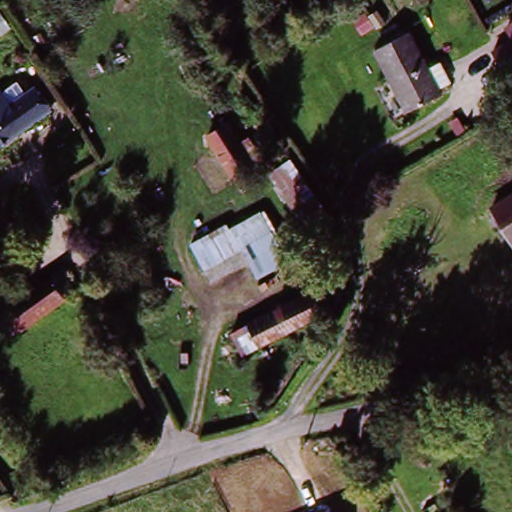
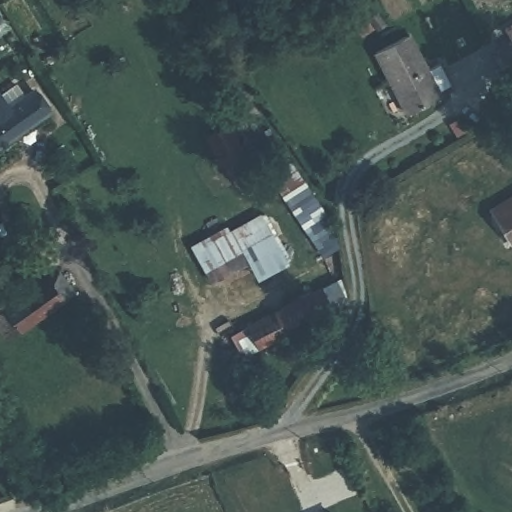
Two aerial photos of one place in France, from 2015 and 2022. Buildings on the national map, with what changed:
unchanged [(512,23),(512,52),(499,30),(512,23)]
unchanged [(407,114),(375,60),(404,43),(420,71),(433,64),(445,86),(433,93),(436,98),(407,114)]
unchanged [(0,151),(0,102),(5,108),(25,88),(45,107),(0,151)]
unchanged [(252,165),(233,177),(210,138),(229,126),(252,165)]
unchanged [(492,211),(512,200),(512,244),(492,211)]
unchanged [(246,248),(267,237),(252,215),(265,208),(293,262),(262,277),(253,262),(246,248)]
unchanged [(190,245),(252,215),(267,237),(246,248),(253,262),(210,285),(190,245)]
unchanged [(0,302),(50,275),(62,295),(3,326),(0,320),(0,302)]
unchanged [(232,333),(305,299),(315,322),(243,355),(232,333)]
unchanged [(330,509),(332,512),(324,512),(330,509)]

